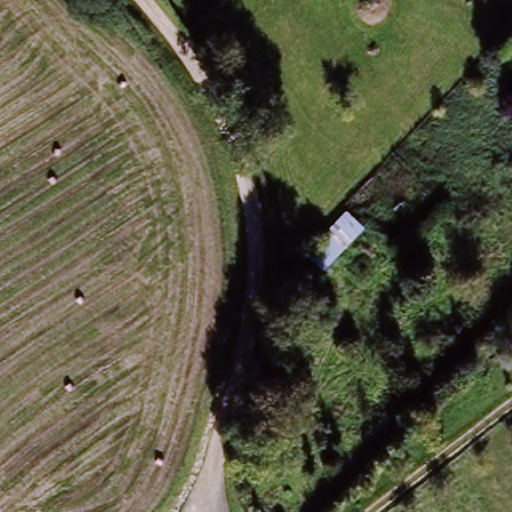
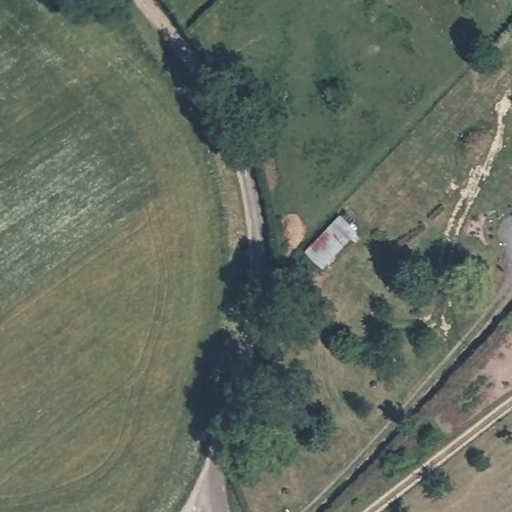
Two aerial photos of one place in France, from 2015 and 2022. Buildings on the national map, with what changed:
unchanged [(326,271),(305,255),(345,214),(362,229),(326,271)]

